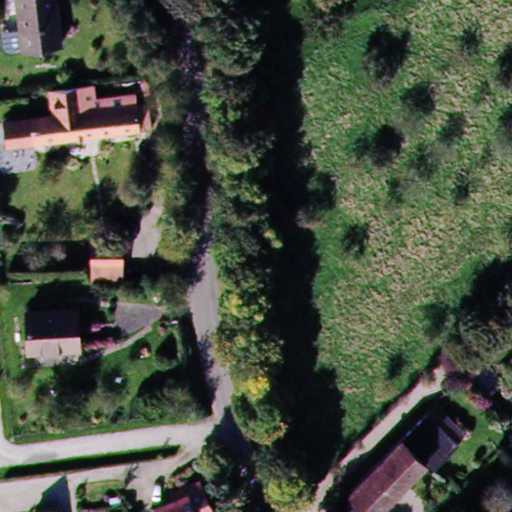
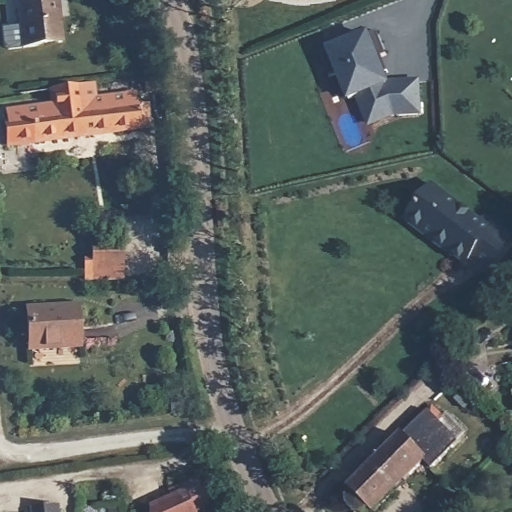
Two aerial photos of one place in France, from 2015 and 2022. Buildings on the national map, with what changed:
unchanged [(30,51),(15,51),(9,0),(63,0),(69,48),(30,51)]
new [(388,55),(381,58),(390,81),(421,81),(424,116),(398,120),(372,131),(359,102),(350,106),(339,76),(332,80),(322,55),(328,51),(370,34),(377,31),(388,55)]
unchanged [(143,112),(144,137),(1,149),(0,124),(47,121),(46,92),(90,88),(92,116),(143,112)]
new [(406,210),(431,177),(480,214),(484,208),(512,229),(512,234),(491,262),(471,247),(466,255),(457,249),(406,210)]
unchanged [(89,248),(120,247),(121,270),(121,284),(91,284),(90,270),(89,248)]
unchanged [(77,345),(27,348),(25,309),(75,307),(77,345)]
unchanged [(354,510),(347,502),(350,497),(354,493),(356,491),(351,486),(428,411),(459,441),(432,469),(425,462),(375,512),(371,507),(364,512),(359,512),(354,510)]
unchanged [(175,501),(172,493),(197,483),(211,510),(206,512),(151,512),(151,511),(175,501)]

